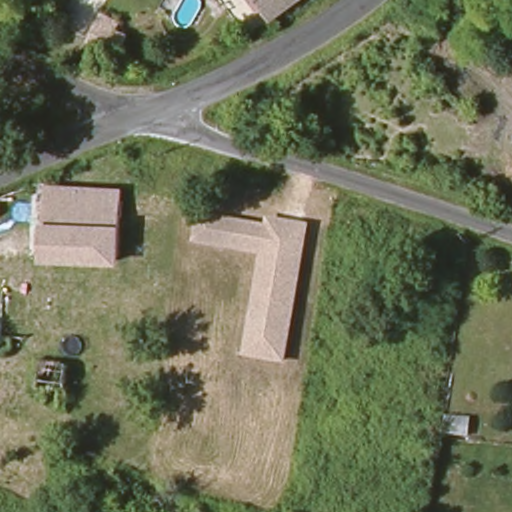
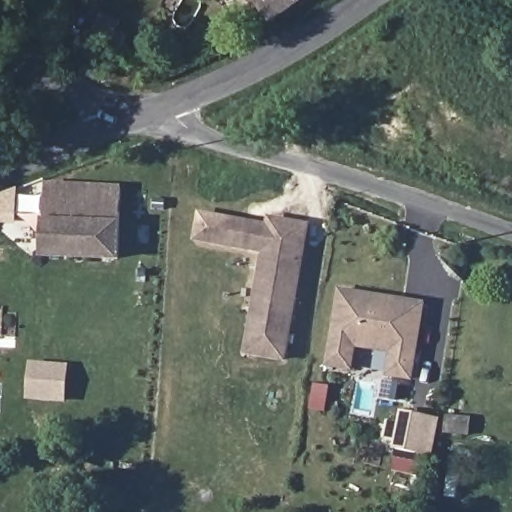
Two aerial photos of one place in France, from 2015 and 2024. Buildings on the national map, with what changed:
unchanged [(275,19),(269,10),(262,15),(253,0),(306,0),(275,19)]
unchanged [(112,45),(126,17),(145,25),(156,30),(152,37),(141,59),(112,45)]
unchanged [(124,224),(122,264),(46,261),(45,222),(48,187),(121,188),(124,224)]
unchanged [(204,214),(270,224),(272,218),(311,226),(287,362),(248,356),(260,256),(197,247),(204,214)]
new [(328,367),(340,287),(427,301),(414,381),(387,377),(390,354),(357,349),(354,371),(328,367)]
new [(28,401),(31,362),(71,365),(69,405),(28,401)]
new [(402,410),(442,418),(434,458),(395,450),(402,410)]

